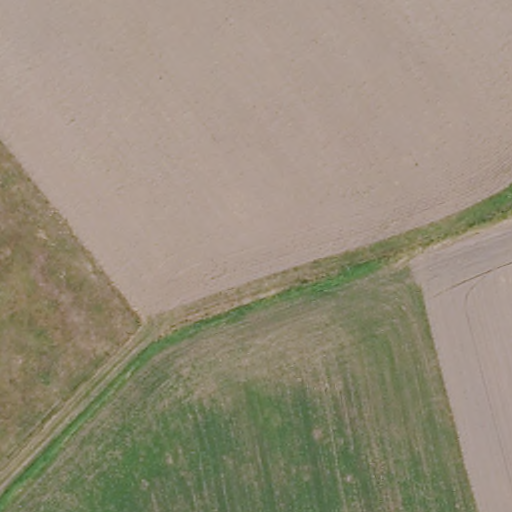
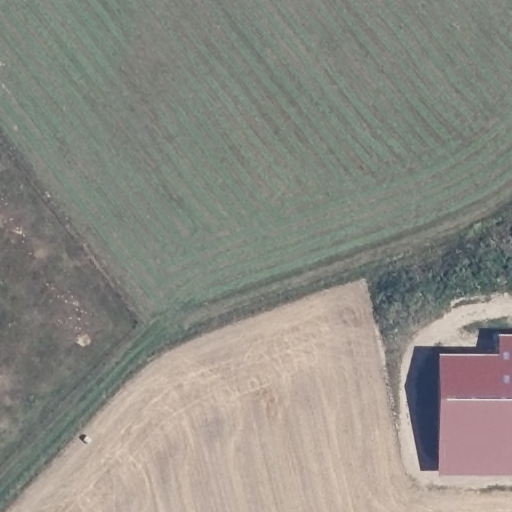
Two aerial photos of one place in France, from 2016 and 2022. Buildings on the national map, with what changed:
new [(440,355),(499,356),(499,336),(512,336),(512,477),(439,477),(440,355)]

